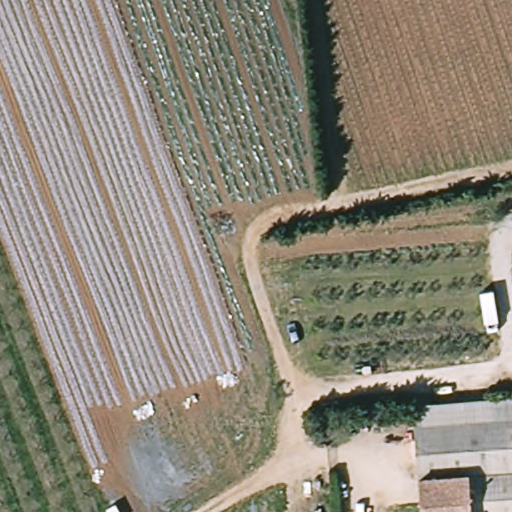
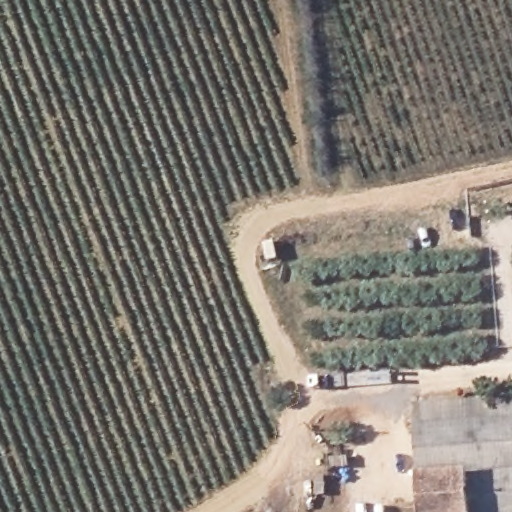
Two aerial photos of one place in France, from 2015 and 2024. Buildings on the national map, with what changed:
unchanged [(512,412),(415,420),(413,400),(512,392),(512,412)]
unchanged [(512,412),(512,512),(422,512),(415,420),(512,412)]

